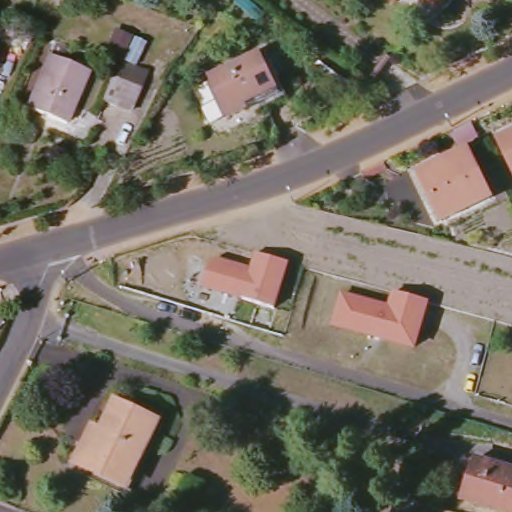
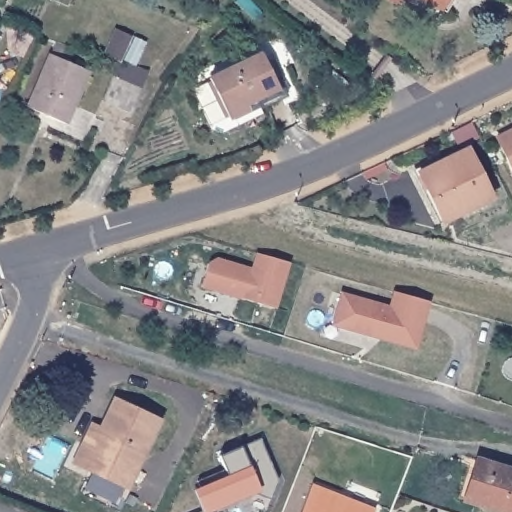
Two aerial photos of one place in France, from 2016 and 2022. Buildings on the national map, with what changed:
unchanged [(391,0),(400,0),(397,4),(391,0)]
unchanged [(422,0),(450,0),(441,14),(422,0)]
unchanged [(101,101),(117,65),(102,57),(115,28),(149,44),(138,70),(148,75),(133,115),(101,101)]
unchanged [(76,64),(58,56),(63,44),(81,50),(76,64)]
unchanged [(285,95),(234,121),(214,80),(265,51),(285,95)]
unchanged [(92,76),(68,126),(33,109),(57,60),(92,76)]
unchanged [(512,135),(512,171),(498,142),(512,135)]
unchanged [(469,151),(493,200),(449,222),(435,193),(430,195),(421,175),(469,151)]
unchanged [(277,309),(204,287),(213,263),(222,259),(254,269),(258,255),(291,264),(277,309)]
unchanged [(418,350),(333,328),(343,294),(390,307),(394,294),(432,304),(418,350)]
unchanged [(86,448),(97,453),(120,403),(165,424),(150,457),(145,455),(129,492),(78,468),(86,448)]
new [(195,491),(228,476),(219,456),(260,438),(278,481),(271,500),(258,495),(213,512),(212,512),(210,508),(204,511),(195,491)]
unchanged [(473,491),(477,477),(471,475),(476,459),(512,469),(512,512),(505,512),(470,502),(473,491)]
new [(313,483),(376,509),(374,512),(301,512),(313,483)]
new [(210,508),(212,512),(200,512),(210,508)]

